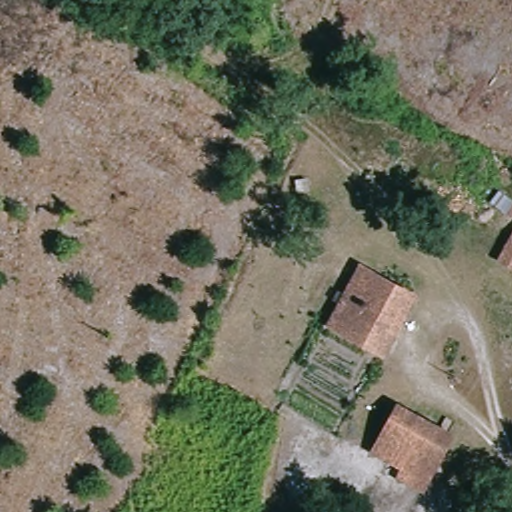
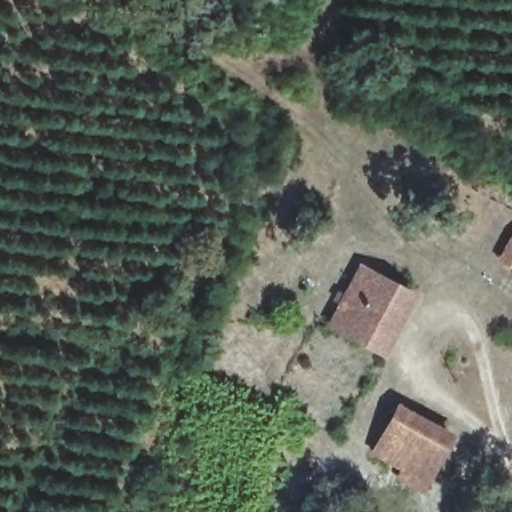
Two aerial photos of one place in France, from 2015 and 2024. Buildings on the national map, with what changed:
unchanged [(507,231),(512,234),(512,269),(495,261),(507,231)]
unchanged [(407,304),(379,352),(331,323),(356,272),(407,304)]
unchanged [(423,475),(382,456),(401,420),(442,439),(423,475)]

